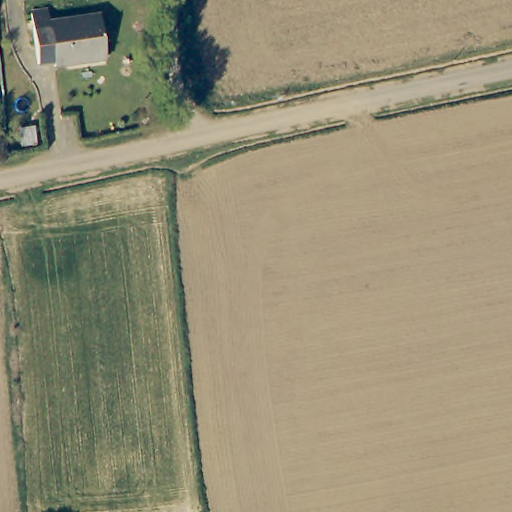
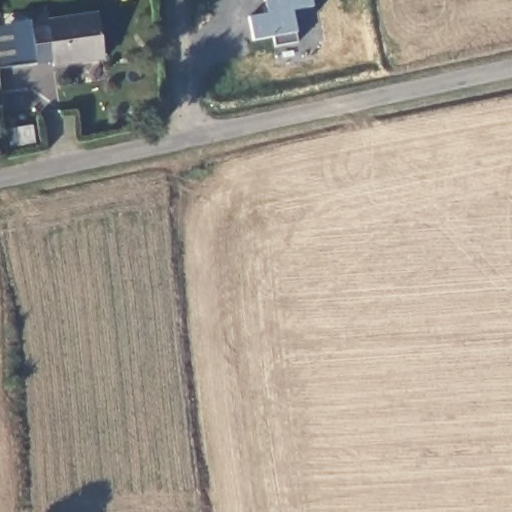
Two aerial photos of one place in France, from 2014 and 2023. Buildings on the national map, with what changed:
new [(267,14),(264,0),(311,0),(312,7),(292,11),(297,43),(275,47),(273,37),(252,41),(248,18),(267,14)]
unchanged [(52,67),(51,62),(36,65),(32,42),(26,13),(42,10),(45,22),(56,20),(95,13),(103,57),(67,64),(60,65),(52,67)]

